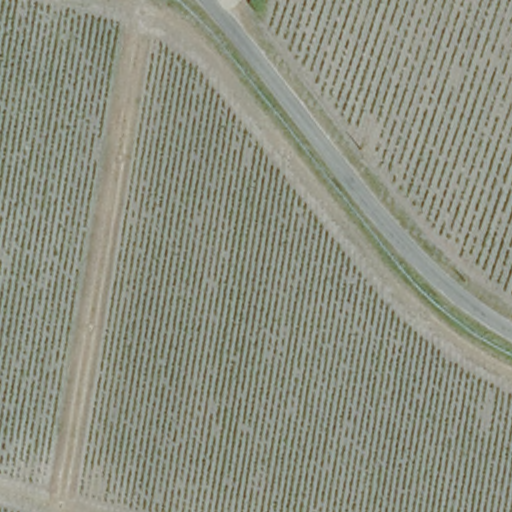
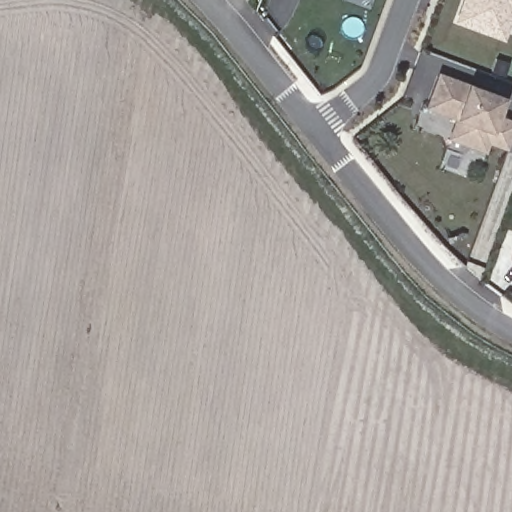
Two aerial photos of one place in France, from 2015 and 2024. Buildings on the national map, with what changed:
new [(493,33),(462,21),(470,0),(512,0),(512,23),(506,38),(493,33)]
new [(447,138),(454,118),(426,108),(440,72),(470,83),(507,97),(501,114),(512,119),(512,136),(507,149),(489,142),(485,152),(447,138)]
new [(510,258),(512,254),(512,259),(510,258)]

